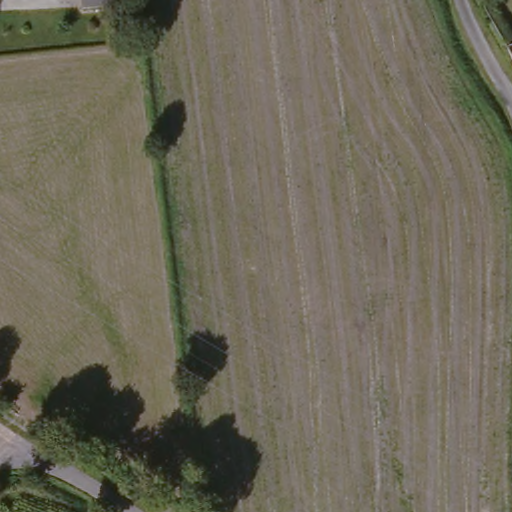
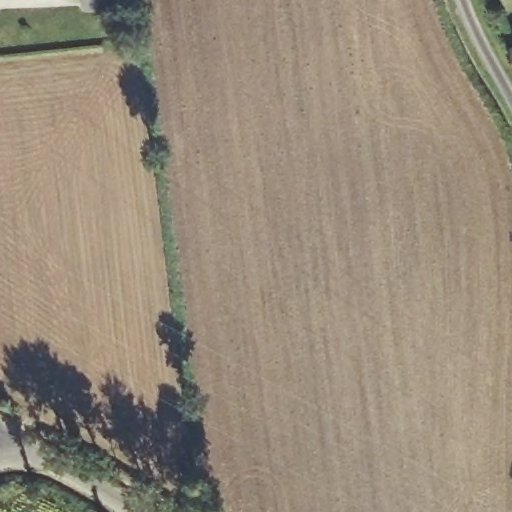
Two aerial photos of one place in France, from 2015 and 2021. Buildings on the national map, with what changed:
unchanged [(105,11),(78,13),(77,0),(123,0),(123,7),(105,9),(105,11)]
unchanged [(512,50),(512,74),(503,54),(512,50)]

